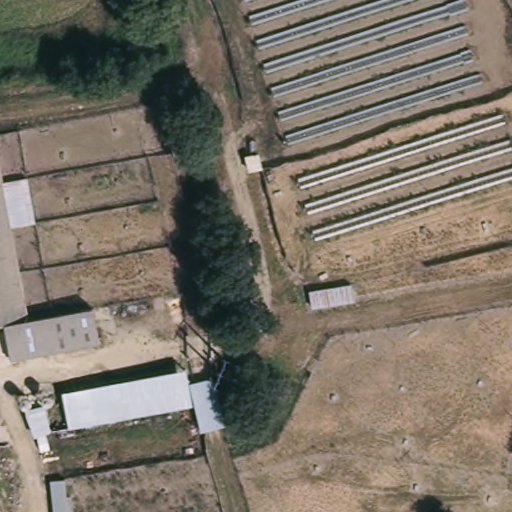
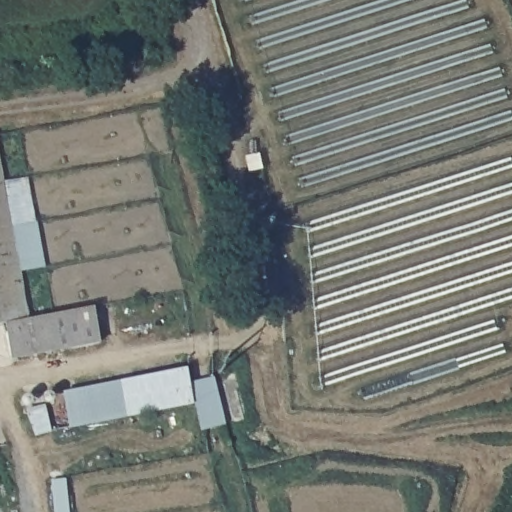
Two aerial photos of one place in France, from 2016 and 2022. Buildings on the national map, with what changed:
unchanged [(17,320),(92,309),(97,344),(7,357),(2,322),(0,322),(0,208),(17,320)]
unchanged [(186,369),(189,383),(215,376),(227,425),(200,432),(192,404),(69,429),(62,393),(186,369)]
unchanged [(67,479),(70,512),(53,512),(50,481),(67,479)]

